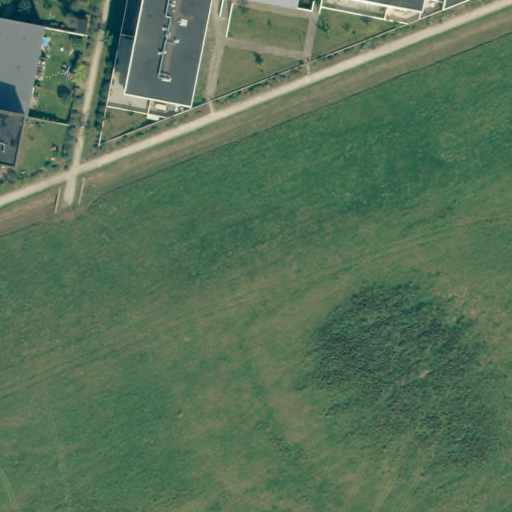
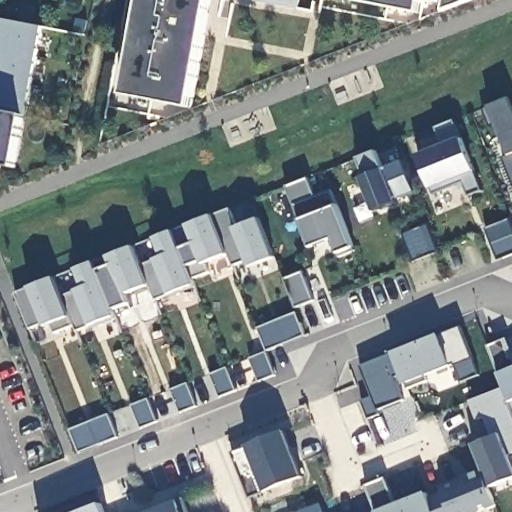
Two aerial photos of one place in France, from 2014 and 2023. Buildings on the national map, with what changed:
unchanged [(124,91),(142,0),(212,0),(192,104),(190,109),(124,95),(124,91)]
unchanged [(249,0),(299,0),(298,9),(249,0)]
unchanged [(424,0),(423,4),(421,14),(406,11),(351,0),(424,0)]
unchanged [(444,4),(426,0),(470,0),(442,11),(444,4)]
unchanged [(9,20),(44,27),(38,59),(26,116),(15,168),(2,165),(0,175),(0,24),(1,19),(9,20)]
new [(511,98),(512,101),(512,183),(502,157),(509,154),(497,125),(491,128),(483,109),(511,98)]
new [(469,196),(464,183),(434,195),(432,190),(417,156),(446,145),(436,128),(455,121),(482,191),(469,196)]
new [(396,200),(398,203),(374,213),(361,179),(366,177),(359,159),(377,153),(384,170),(404,162),(416,193),(396,200)]
new [(309,179),(317,198),(332,192),(338,207),(354,247),(339,254),(334,238),(311,248),(302,222),(288,188),(309,179)]
new [(230,209),(238,227),(260,218),(275,258),(250,268),(248,261),(234,267),(229,254),(213,215),(230,209)]
new [(213,215),(229,254),(206,263),(209,273),(193,279),(174,231),(213,215)]
new [(510,219),(512,224),(512,255),(499,261),(486,229),(510,219)]
new [(429,224),(440,252),(431,255),(414,262),(404,234),(420,228),(429,224)]
new [(163,257),(155,238),(174,231),(193,279),(196,288),(170,298),(169,295),(155,300),(149,285),(141,265),(163,257)]
new [(134,247),(141,265),(149,285),(127,294),(130,304),(114,310),(94,262),(134,247)]
new [(90,326),(76,332),(74,326),(63,296),(84,288),(76,269),(94,262),(114,310),(117,319),(99,326),(91,329),(90,326)]
new [(304,271),(315,300),(295,308),(284,279),(304,271)]
new [(55,278),(63,296),(74,326),(54,334),(51,324),(45,327),(44,324),(30,329),(15,293),(55,278)]
new [(307,337),(284,346),(267,352),(258,329),(274,322),(298,313),(307,337)]
new [(363,402),(372,398),(360,367),(393,354),(440,335),(461,328),(479,376),(462,383),(455,363),(452,365),(405,386),(402,377),(396,379),(404,401),(378,411),(379,415),(369,418),(363,402)]
new [(510,402),(504,388),(499,374),(488,346),(508,339),(512,349),(512,407),(510,402)]
new [(259,383),(250,359),(267,352),(277,376),(259,383)]
new [(237,392),(220,398),(210,374),(228,368),(237,392)]
new [(198,407),(180,414),(171,390),(188,383),(198,407)]
new [(483,472),(473,445),(493,437),(484,417),(478,420),(471,402),(504,388),(510,402),(512,407),(512,454),(509,456),(512,462),(512,480),(490,489),(483,472)]
new [(248,447),(285,432),(304,478),(266,493),(248,447)]
new [(443,494),(441,489),(483,472),(490,489),(497,507),(484,512),(434,512),(429,499),(443,494)]
new [(366,486),(386,478),(397,506),(428,494),(429,499),(434,512),(376,512),(366,486)]
new [(190,512),(149,512),(177,501),(184,499),(190,512)]
new [(101,505),(104,512),(83,512),(101,505)]

